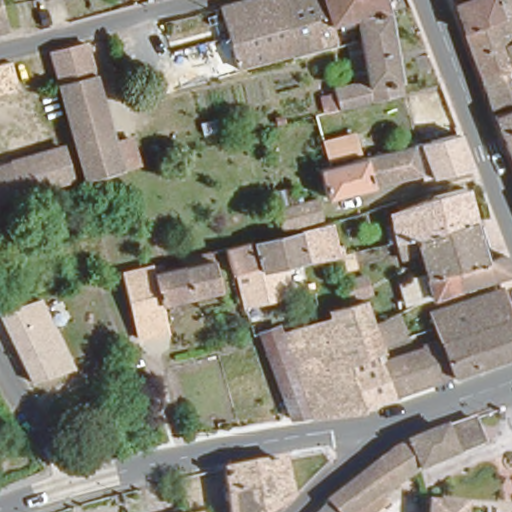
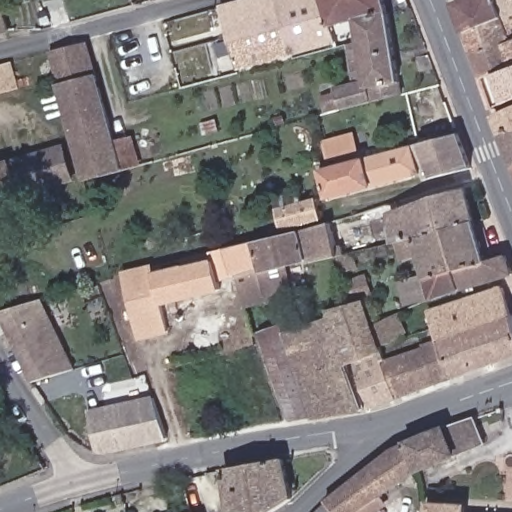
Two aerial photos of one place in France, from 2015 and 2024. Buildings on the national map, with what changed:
unchanged [(1,0),(10,31),(0,33),(0,0),(1,0)]
unchanged [(154,0),(156,0),(155,1),(154,0)]
unchanged [(378,0),(382,17),(370,21),(367,13),(352,17),(331,23),(334,38),(234,64),(217,3),(228,0),(378,0)]
unchanged [(481,74),(465,29),(455,2),(461,0),(512,0),(512,65),(511,65),(481,74)]
unchanged [(317,97),(332,92),(330,85),(367,75),(358,37),(352,17),(367,13),(370,21),(382,17),(396,92),(371,99),(337,109),(322,114),(317,97)]
unchanged [(106,106),(67,116),(58,82),(51,49),(88,39),(106,106)]
unchanged [(6,59),(16,92),(0,96),(0,60),(6,59)]
unchanged [(511,65),(512,65),(512,96),(491,103),(481,74),(511,65)]
unchanged [(512,104),(512,160),(493,110),(512,104)]
unchanged [(86,181),(84,181),(82,176),(67,116),(106,106),(123,170),(86,181)]
unchanged [(463,165),(420,179),(417,173),(408,145),(451,132),(463,165)]
unchanged [(269,136),(270,140),(263,142),(258,143),(257,140),(257,139),(269,136)]
unchanged [(366,152),(336,160),(331,145),(361,137),(366,152)]
unchanged [(417,173),(328,198),(320,170),(323,169),(333,166),(395,148),(408,145),(417,173)]
unchanged [(64,149),(73,179),(0,201),(0,168),(64,149)]
unchanged [(157,180),(126,186),(123,170),(153,164),(157,180)]
unchanged [(397,237),(391,211),(461,189),(470,221),(398,241),(397,237)]
unchanged [(311,202),(316,220),(277,230),(272,212),(311,202)]
unchanged [(461,290),(433,301),(419,250),(403,255),(398,241),(470,221),(482,264),(502,257),(507,273),(500,277),(472,285),(461,290)]
unchanged [(323,224),(331,248),(337,247),(340,257),(337,259),(303,268),(302,265),(291,232),(323,224)]
unchanged [(228,275),(220,251),(247,244),(262,240),(272,237),(278,235),(291,232),(302,265),(259,277),(258,273),(231,282),(228,275)]
unchanged [(164,268),(165,270),(185,265),(184,262),(217,254),(226,288),(165,305),(171,332),(142,338),(123,278),(164,268)]
unchanged [(463,299),(502,286),(512,310),(512,316),(474,328),(463,299)]
unchanged [(33,383),(0,313),(0,311),(42,298),(74,367),(33,383)]
unchanged [(426,312),(463,299),(474,328),(434,342),(429,325),(426,312)]
unchanged [(382,360),(393,396),(362,407),(327,412),(312,415),(285,329),(332,317),(330,310),(352,305),(366,301),(373,323),(395,315),(402,335),(379,343),(383,358),(382,360)]
unchanged [(434,342),(474,328),(512,316),(512,354),(436,381),(422,346),(434,342)]
unchanged [(283,323),(285,329),(312,415),(291,418),(260,330),(283,323)]
unchanged [(382,360),(383,358),(422,346),(436,381),(393,396),(382,360)]
new [(97,452),(87,410),(155,396),(167,442),(108,454),(97,452)]
unchanged [(327,497),(369,470),(393,456),(417,446),(472,425),(481,450),(426,470),(378,499),(382,510),(378,512),(337,512),(327,497)]
unchanged [(228,471),(284,461),(290,493),(267,512),(235,512),(228,471)]
unchanged [(327,497),(337,512),(306,512),(327,497)]
unchanged [(432,505),(462,506),(462,512),(431,512),(432,505)]

